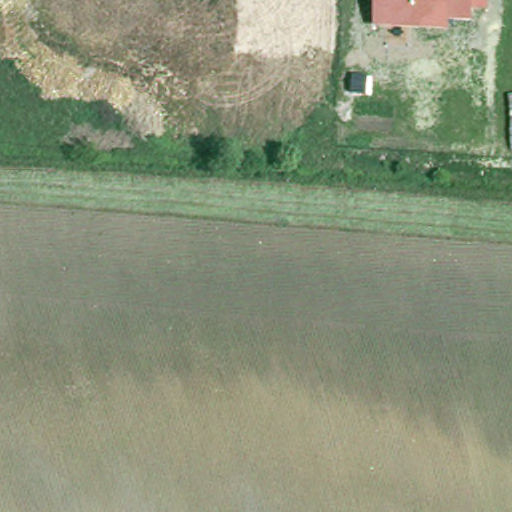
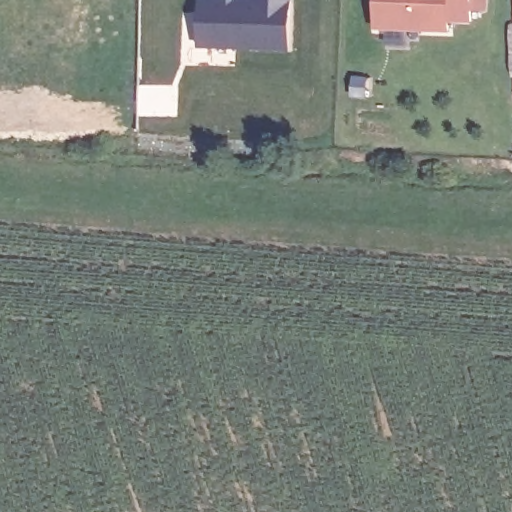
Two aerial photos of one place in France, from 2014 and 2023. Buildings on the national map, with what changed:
new [(200,49),(202,0),(293,0),(290,53),(200,49)]
unchanged [(472,14),(472,24),(449,24),(449,34),(375,31),(376,0),(488,0),(487,14),(472,14)]

